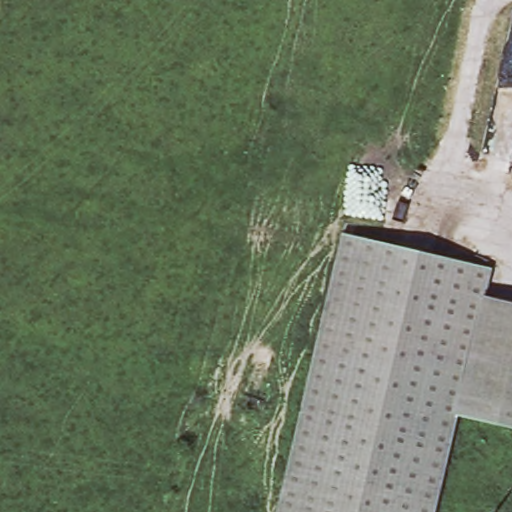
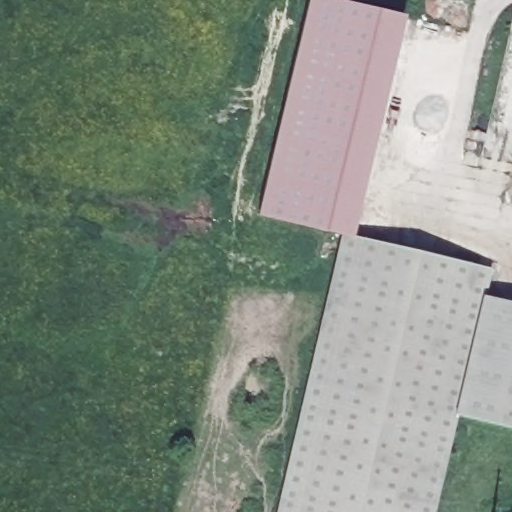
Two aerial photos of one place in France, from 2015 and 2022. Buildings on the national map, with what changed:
new [(342,233),(259,213),(308,0),(339,0),(404,14),(353,230),(344,228),(342,233)]
unchanged [(494,266),(487,296),(457,412),(432,512),(272,512),(344,228),(494,266)]
unchanged [(512,427),(457,412),(487,296),(512,303),(512,427)]

